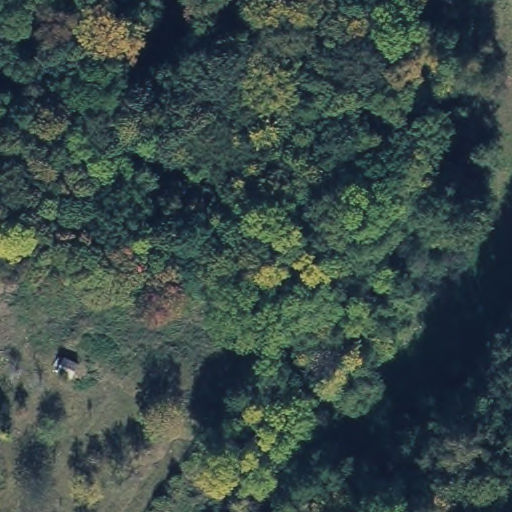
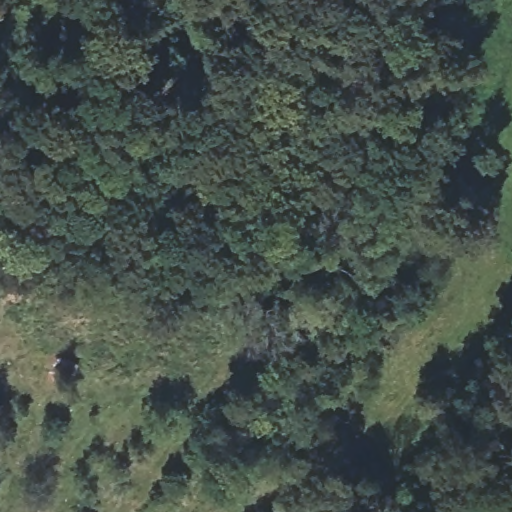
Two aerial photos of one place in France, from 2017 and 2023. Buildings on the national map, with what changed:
unchanged [(79,362),(74,376),(57,369),(62,356),(79,362)]

